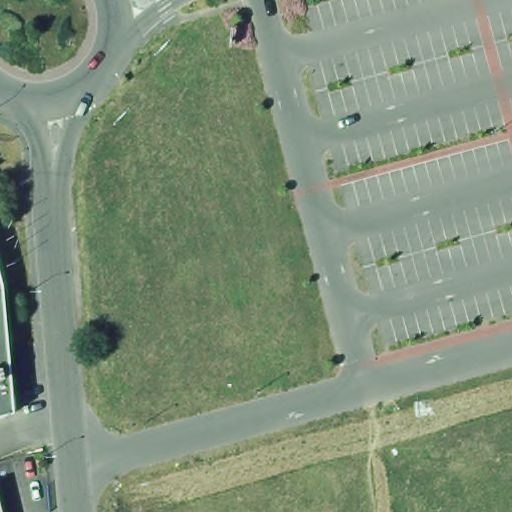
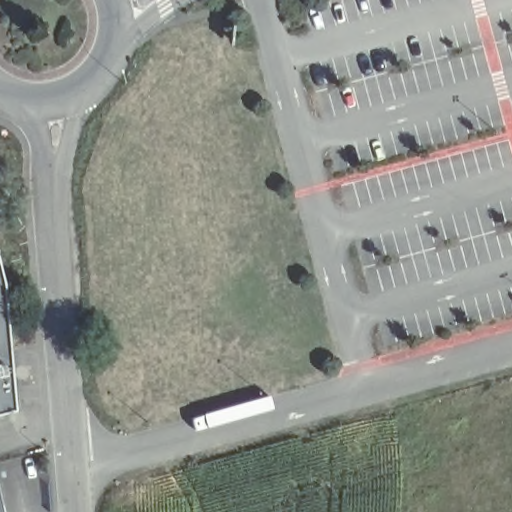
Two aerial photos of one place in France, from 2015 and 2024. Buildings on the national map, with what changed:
unchanged [(4,280),(15,408),(0,412),(0,262),(4,280)]
unchanged [(7,512),(0,512),(0,489),(1,489),(7,512)]

